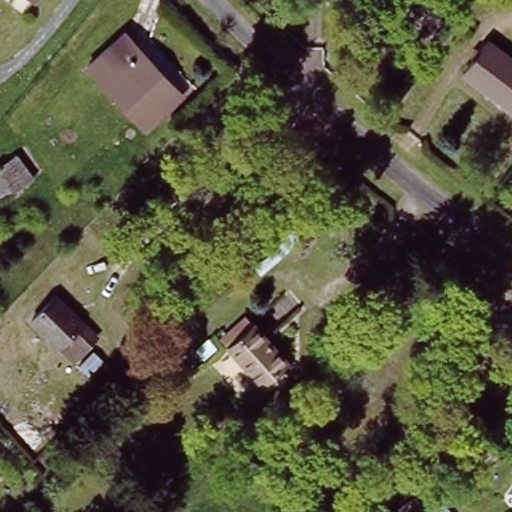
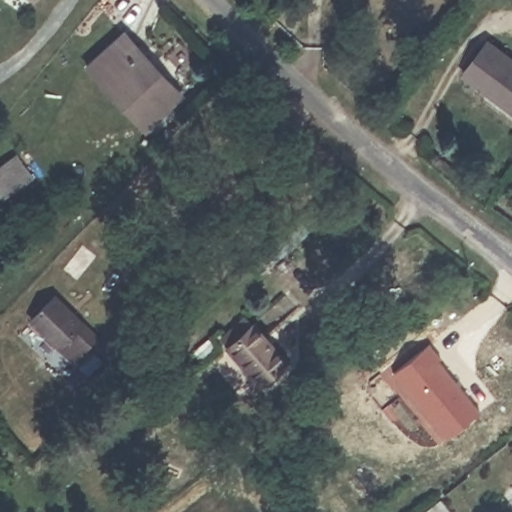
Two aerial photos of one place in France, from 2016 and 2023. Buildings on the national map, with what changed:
unchanged [(38,2),(35,0),(39,0),(38,2)]
unchanged [(183,101),(146,131),(91,71),(129,40),(183,101)]
unchanged [(512,63),(512,106),(463,72),(485,45),(512,63)]
unchanged [(32,180),(0,204),(0,167),(15,157),(32,180)]
unchanged [(90,335),(66,358),(28,318),(53,295),(90,335)]
unchanged [(268,392),(233,355),(224,345),(248,323),(258,333),(293,370),(268,392)]
new [(429,344),(442,359),(439,361),(480,411),(447,438),(394,373),(429,344)]
unchanged [(445,512),(431,512),(439,505),(445,512)]

